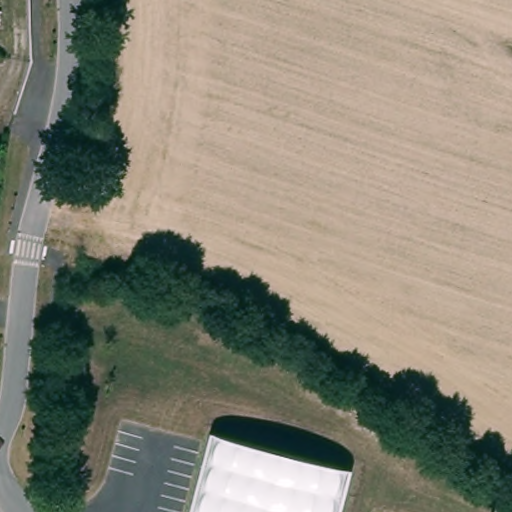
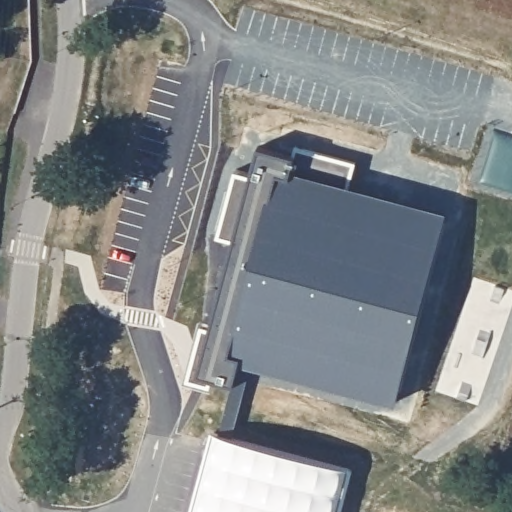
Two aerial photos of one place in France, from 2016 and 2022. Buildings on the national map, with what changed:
new [(234,241),(218,236),(236,171),(252,175),(258,149),(292,158),(295,147),(356,163),(348,191),(446,217),(397,402),(332,384),(272,346),(234,324),(214,315),(234,241)]
unchanged [(216,434),(343,468),(332,512),(196,512),(216,434)]

